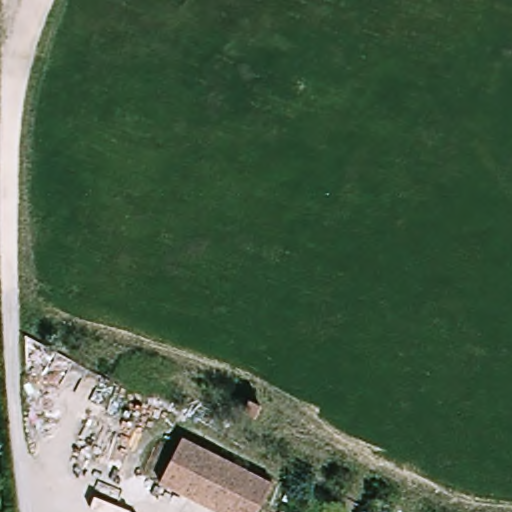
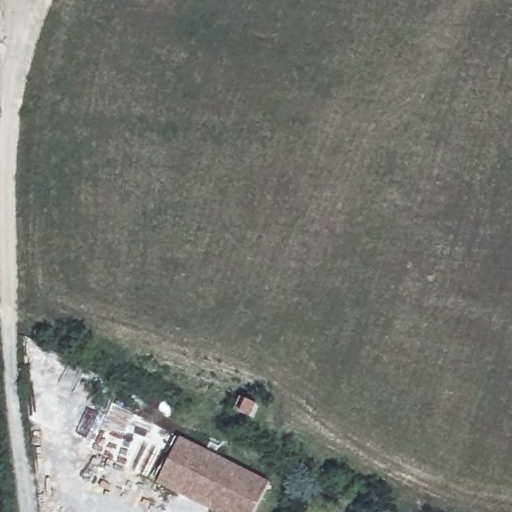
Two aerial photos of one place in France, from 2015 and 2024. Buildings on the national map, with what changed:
unchanged [(165,488),(187,443),(274,487),(262,512),(212,512),(165,488)]

